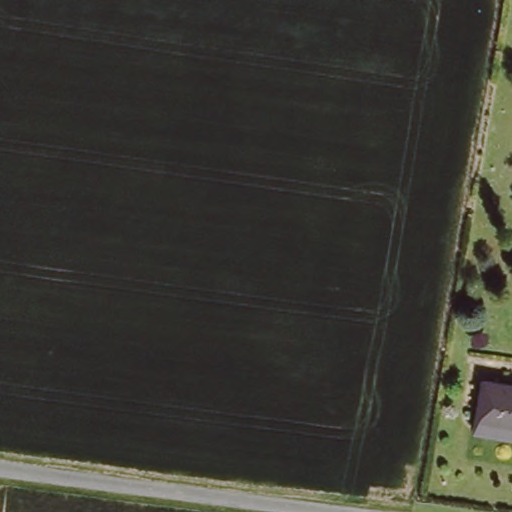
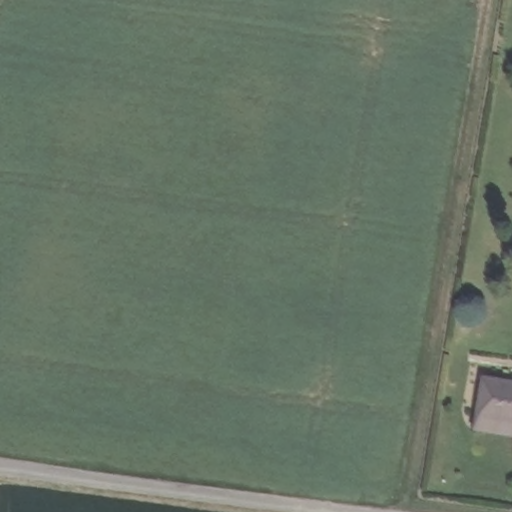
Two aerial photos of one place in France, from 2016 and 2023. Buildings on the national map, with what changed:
unchanged [(484,371),(512,376),(512,414),(478,409),(484,371)]
unchanged [(512,431),(476,426),(478,409),(512,414),(512,431)]

